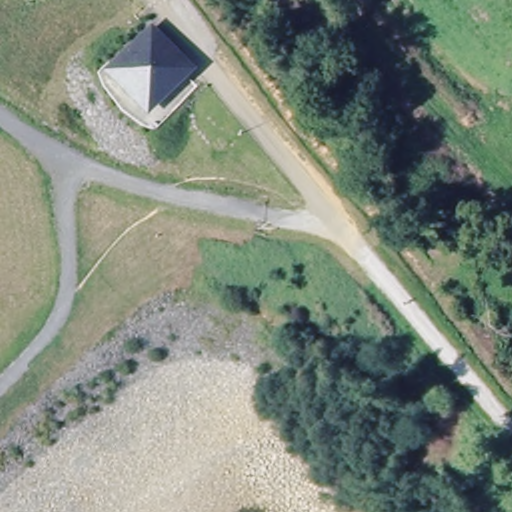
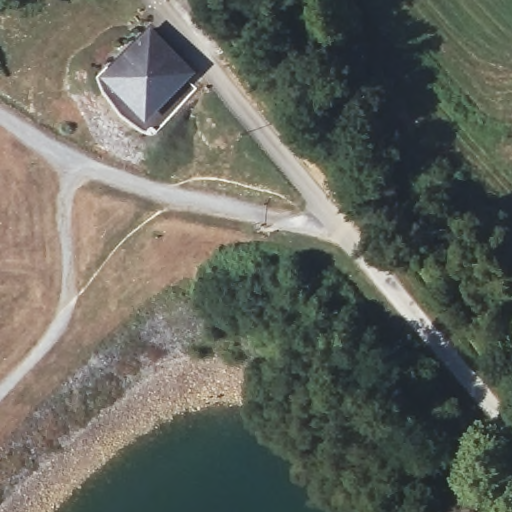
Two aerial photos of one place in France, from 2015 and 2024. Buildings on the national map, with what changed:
unchanged [(195,81),(145,122),(103,72),(152,30),(195,81)]

